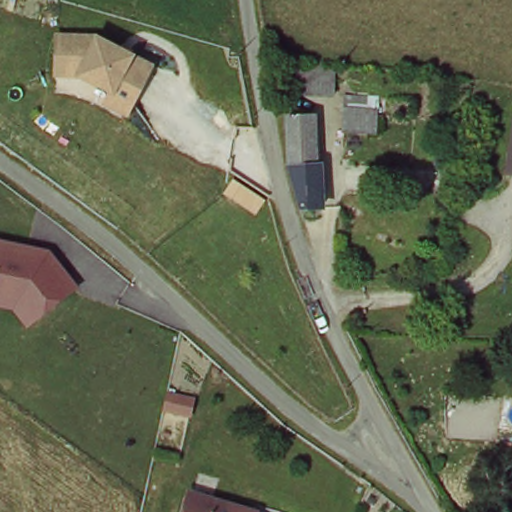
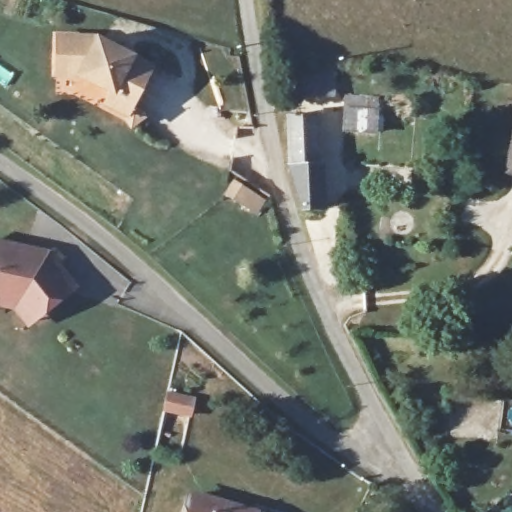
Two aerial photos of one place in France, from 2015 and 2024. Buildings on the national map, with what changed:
unchanged [(97,36),(130,51),(131,49),(155,64),(130,118),(104,103),(108,94),(81,78),(56,77),(57,34),(97,36)]
unchanged [(272,76),(275,48),(322,55),(320,81),(272,76)]
unchanged [(333,120),(337,86),(368,90),(365,123),(333,120)]
unchanged [(283,166),(289,112),(316,115),(310,163),(315,164),(310,208),(288,205),(283,166)]
unchanged [(80,288),(25,328),(12,309),(0,309),(0,241),(51,251),(80,288)]
unchanged [(186,500),(243,512),(183,512),(186,500)]

